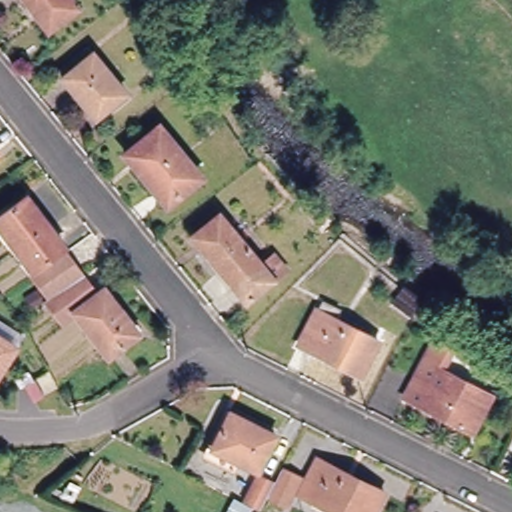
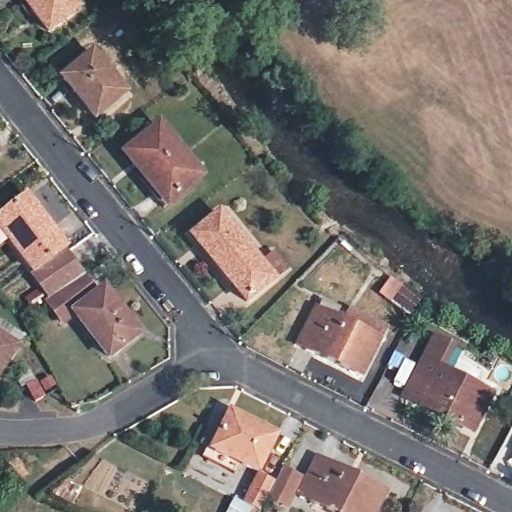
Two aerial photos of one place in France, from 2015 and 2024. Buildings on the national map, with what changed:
unchanged [(77,10),(47,33),(21,0),(69,0),(77,10)]
unchanged [(128,95),(100,118),(78,91),(66,77),(95,54),(128,95)]
unchanged [(166,205),(134,166),(125,154),(156,129),(198,180),(166,205)]
unchanged [(66,250),(62,253),(83,280),(54,297),(0,227),(0,220),(26,200),(66,250)]
unchanged [(201,253),(188,237),(213,216),(240,248),(254,237),(268,253),(227,286),(201,253)]
unchanged [(96,298),(104,292),(138,338),(108,359),(75,314),(64,322),(47,301),(54,297),(83,280),(96,298)]
unchanged [(405,290),(426,300),(419,314),(398,304),(405,290)]
unchanged [(356,377),(295,346),(313,311),(317,303),(335,311),(330,320),(374,341),(356,377)]
unchanged [(0,369),(0,338),(14,347),(0,369)]
unchanged [(457,427),(403,401),(408,390),(394,383),(407,357),(476,391),(457,427)]
unchanged [(30,382),(40,376),(49,393),(40,398),(30,382)]
unchanged [(209,450),(229,412),(234,414),(233,418),(277,440),(259,475),(243,468),(215,453),(209,450)]
unchanged [(377,512),(332,512),(301,496),(319,463),(385,496),(377,512)]
unchanged [(281,471),(299,480),(286,506),(268,497),(261,512),(257,512),(244,505),(257,480),(273,488),(281,471)]

